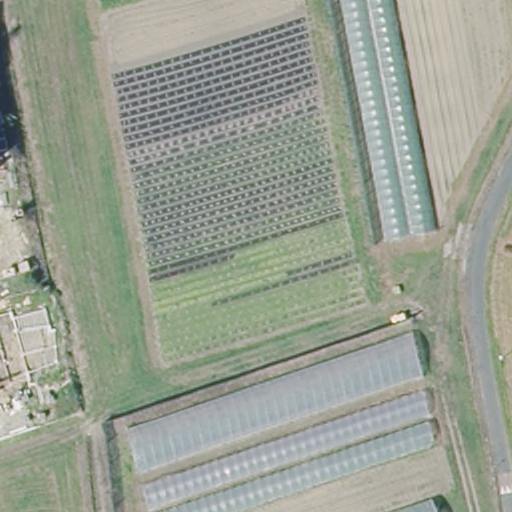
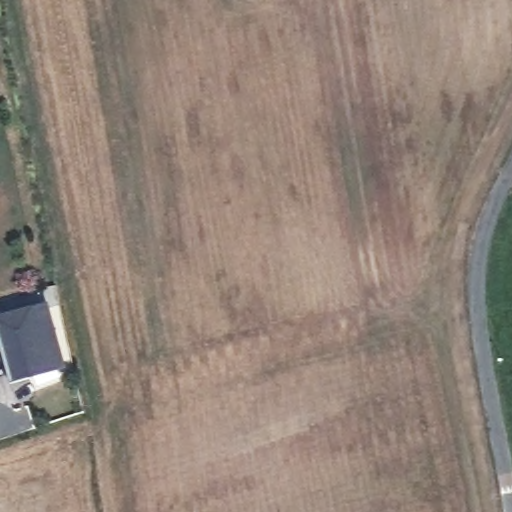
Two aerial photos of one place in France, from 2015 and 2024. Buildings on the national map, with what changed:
demolished [(440,233),(389,243),(343,0),(396,0),(440,233)]
demolished [(12,246),(0,250),(0,217),(12,246)]
new [(10,378),(5,363),(0,347),(0,309),(9,306),(10,311),(41,302),(48,323),(52,322),(57,354),(28,366),(30,371),(10,378)]
demolished [(238,512),(146,512),(125,427),(413,329),(437,445),(238,512)]
demolished [(51,434),(44,413),(80,403),(85,424),(51,434)]
demolished [(436,512),(384,512),(430,496),(436,512)]

